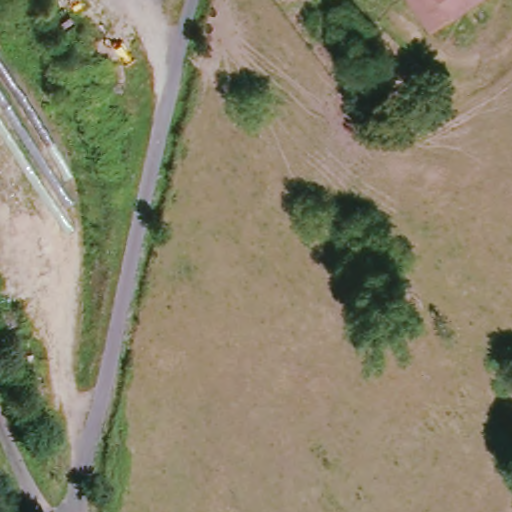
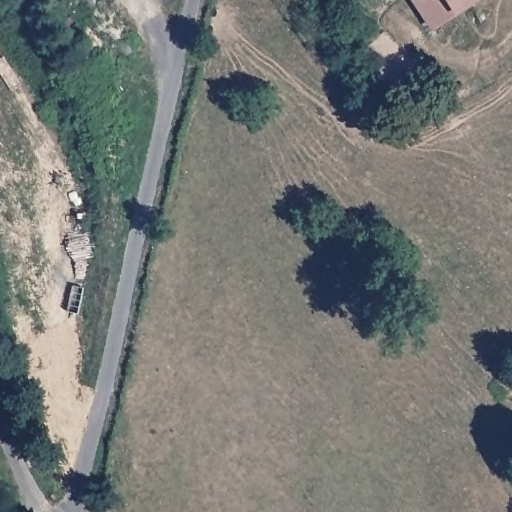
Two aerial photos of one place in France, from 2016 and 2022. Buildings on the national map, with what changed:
unchanged [(457,13),(448,0),(477,0),(473,2),(457,13)]

